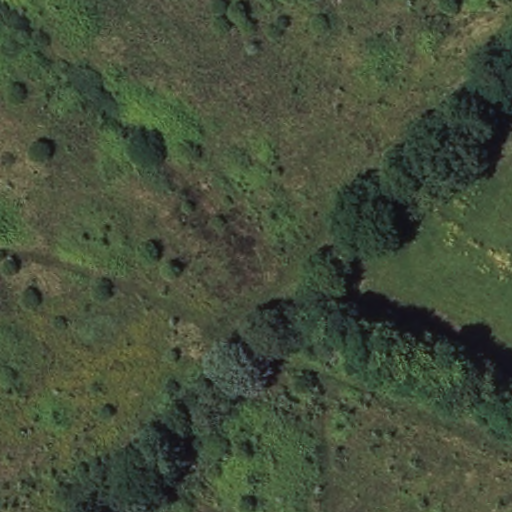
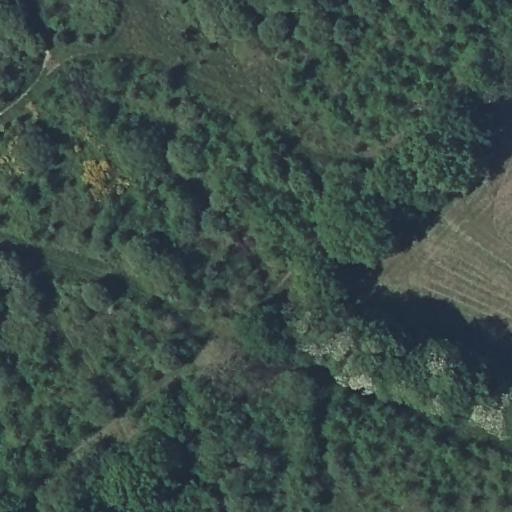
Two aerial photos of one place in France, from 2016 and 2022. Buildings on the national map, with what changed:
[]

